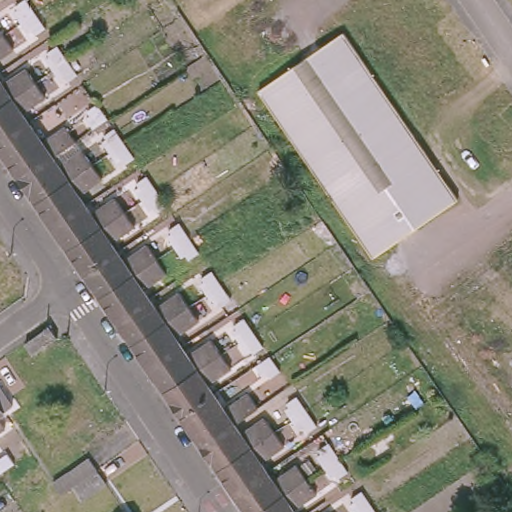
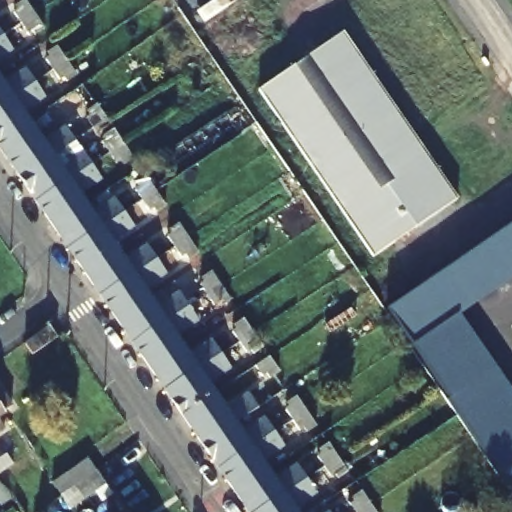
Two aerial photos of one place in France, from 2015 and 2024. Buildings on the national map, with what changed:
unchanged [(34,30),(31,33),(24,23),(17,13),(21,11),(17,6),(26,1),(36,15),(46,29),(37,35),(34,30)]
unchanged [(344,34),(458,200),(374,258),(260,91),(344,34)]
unchanged [(0,57),(0,38),(9,50),(0,57)]
unchanged [(66,77),(62,79),(55,70),(47,59),(52,56),(50,53),(59,47),(69,61),(77,75),(69,81),(66,77)]
unchanged [(31,83),(0,104),(0,84),(22,69),(31,83)]
unchanged [(41,98),(19,114),(25,123),(0,140),(0,104),(31,83),(41,98)]
unchanged [(96,129),(88,117),(92,115),(90,112),(99,106),(109,121),(96,129)]
unchanged [(72,142),(48,158),(16,180),(0,157),(0,140),(25,123),(38,143),(61,127),(72,142)]
unchanged [(106,142),(109,140),(106,136),(115,130),(126,146),(134,158),(126,163),(122,159),(118,162),(112,152),(106,142)]
unchanged [(16,180),(48,158),(55,167),(77,151),(87,165),(32,203),(16,180)]
unchanged [(32,203),(87,165),(97,180),(75,195),(81,204),(48,227),(32,203)]
unchanged [(167,206),(159,212),(156,208),(152,210),(145,200),(137,190),(142,187),(139,183),(147,178),(157,192),(159,193),(167,206)]
unchanged [(48,227),(81,204),(87,214),(110,198),(120,213),(64,251),(48,227)]
unchanged [(64,251),(120,213),(130,227),(107,243),(114,252),(80,274),(64,251)]
new [(387,310),(512,224),(512,278),(459,314),(512,391),(512,494),(387,310)]
unchanged [(198,252),(190,259),(187,255),(184,258),(176,247),(169,236),(172,233),(171,231),(179,225),(189,238),(190,240),(198,252)]
unchanged [(80,274),(114,252),(120,260),(142,245),(152,260),(96,298),(80,274)]
unchanged [(96,298),(152,260),(162,275),(140,291),(146,299),(112,321),(96,298)]
unchanged [(223,307),(220,302),(216,305),(209,295),(202,285),(206,282),(204,278),(212,273),(222,287),(232,301),(223,307)]
unchanged [(112,321),(146,299),(152,308),(175,293),(185,307),(129,345),(112,321)]
unchanged [(129,345),(185,307),(195,322),(172,337),(178,346),(145,369),(129,345)]
unchanged [(252,350),(248,352),(242,343),(235,333),(239,330),(236,326),(244,320),(255,335),(264,348),(255,354),(252,350)]
unchanged [(25,343),(50,326),(57,338),(59,338),(33,355),(25,343)]
unchanged [(145,369),(178,346),(185,355),(207,340),(218,356),(161,393),(145,369)]
unchanged [(161,393),(218,356),(227,370),(205,385),(211,394),(177,417),(161,393)]
unchanged [(271,377),(268,374),(264,376),(257,366),(270,357),(272,360),(279,371),(271,377)]
unchanged [(221,409),(242,393),(254,408),(231,424),(198,447),(177,417),(211,394),(221,409)]
unchanged [(316,426),(308,432),(305,428),(301,431),(294,420),(287,411),(292,408),(289,404),(298,398),(307,411),(308,413),(316,426)]
unchanged [(0,420),(0,415),(2,418),(0,420)]
unchanged [(214,471),(198,447),(231,424),(237,433),(260,417),(271,432),(214,471)]
unchanged [(214,471),(271,432),(281,447),(257,463),(264,472),(231,494),(214,471)]
unchanged [(347,472),(339,479),(337,475),(332,477),(326,466),(319,457),(323,454),(320,450),(329,444),(338,458),(340,460),(347,472)]
unchanged [(93,476),(80,485),(72,473),(107,449),(115,461),(122,472),(100,487),(93,476)]
unchanged [(16,465),(0,476),(0,462),(9,455),(16,465)]
unchanged [(264,472),(269,480),(292,465),(302,479),(254,512),(242,512),(231,494),(264,472)]
unchanged [(312,494),(290,511),(290,512),(254,512),(302,479),(312,494)]
unchanged [(357,512),(352,505),(356,502),(352,498),(362,492),(371,506),(372,508),(375,512),(357,512)]

